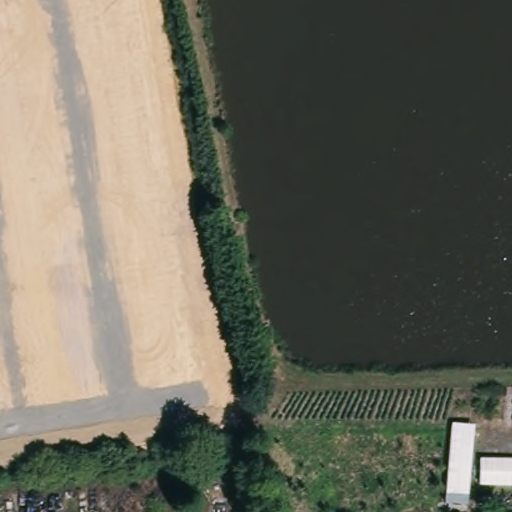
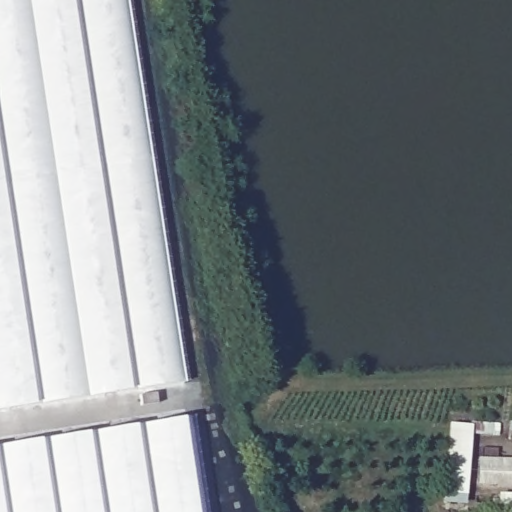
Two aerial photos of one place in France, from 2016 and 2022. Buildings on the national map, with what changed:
new [(185,383),(0,409),(0,0),(127,0),(185,383)]
new [(190,416),(204,512),(0,512),(0,445),(190,416)]
unchanged [(472,434),(465,512),(446,510),(453,432),(472,434)]

